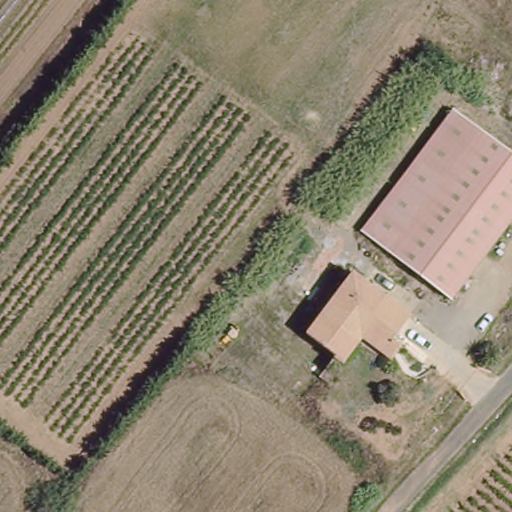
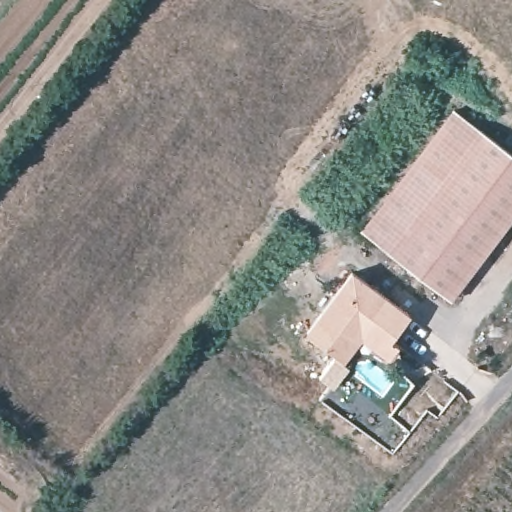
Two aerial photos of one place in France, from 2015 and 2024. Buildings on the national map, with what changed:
unchanged [(512,146),(512,221),(455,295),(367,226),(461,105),(512,146)]
unchanged [(336,354),(306,331),(352,271),(409,315),(390,340),(398,345),(388,356),(360,335),(356,340),(341,358),(336,354)]

